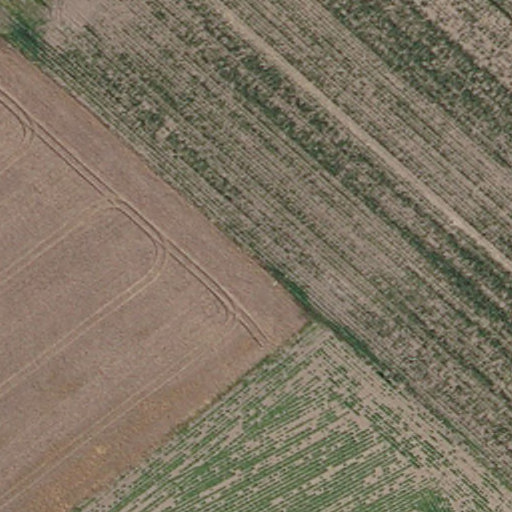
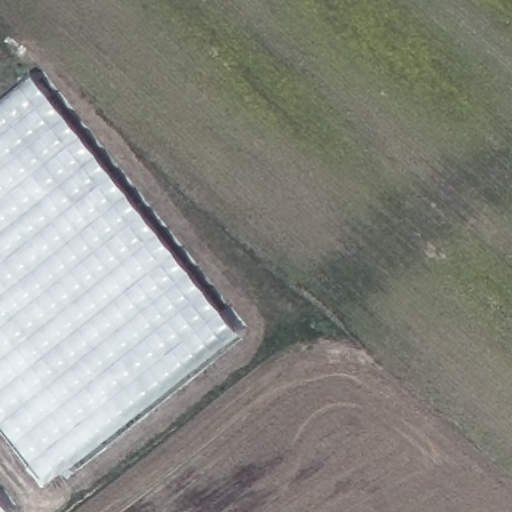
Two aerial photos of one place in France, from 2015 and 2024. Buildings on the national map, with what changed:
new [(0,419),(0,105),(35,76),(243,335),(52,483),(0,419)]
new [(12,512),(0,512),(0,497),(12,512)]

